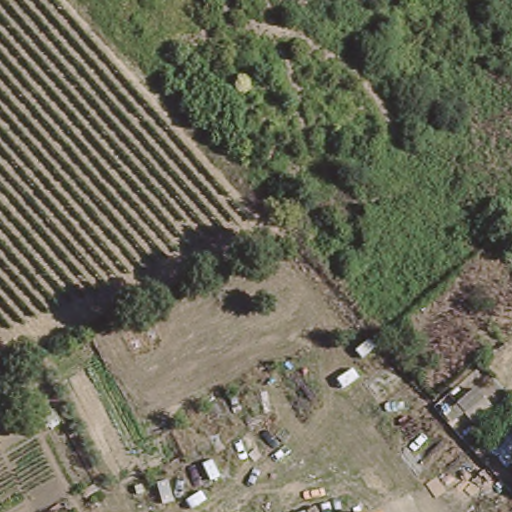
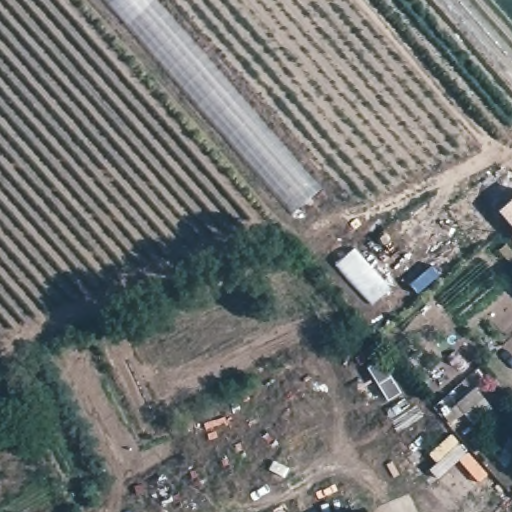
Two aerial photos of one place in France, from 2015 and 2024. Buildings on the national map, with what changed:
new [(293,215),(102,0),(157,0),(323,187),(293,215)]
unchanged [(512,204),(512,234),(498,217),(512,204)]
unchanged [(512,264),(510,266),(497,251),(505,244),(512,252),(512,264)]
unchanged [(365,512),(356,512),(364,508),(365,512)]

